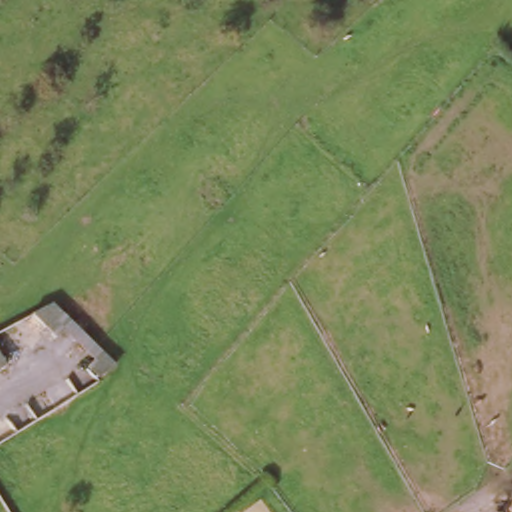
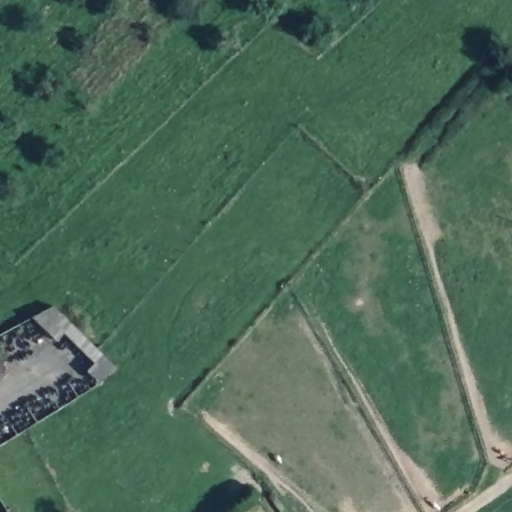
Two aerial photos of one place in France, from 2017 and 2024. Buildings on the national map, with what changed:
unchanged [(87,378),(73,367),(80,359),(54,338),(47,346),(21,323),(42,312),(61,330),(87,351),(102,363),(87,378)]

